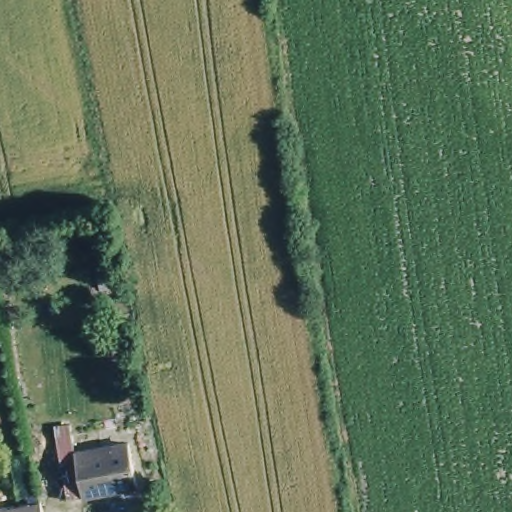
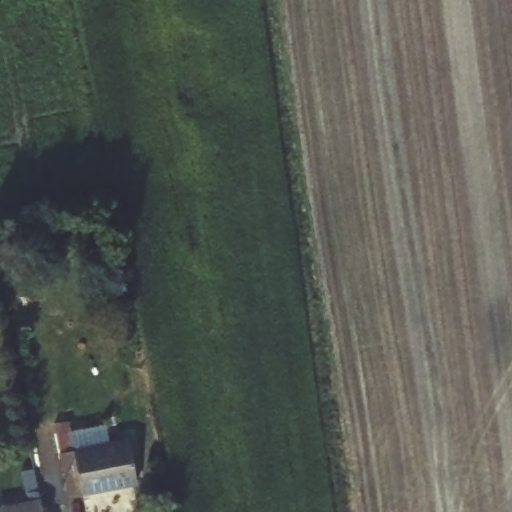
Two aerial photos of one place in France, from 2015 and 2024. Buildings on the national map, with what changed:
unchanged [(102,311),(92,269),(122,261),(131,305),(102,311)]
unchanged [(135,485),(70,498),(61,452),(128,440),(135,485)]
unchanged [(38,512),(0,512),(0,510),(36,502),(38,512)]

